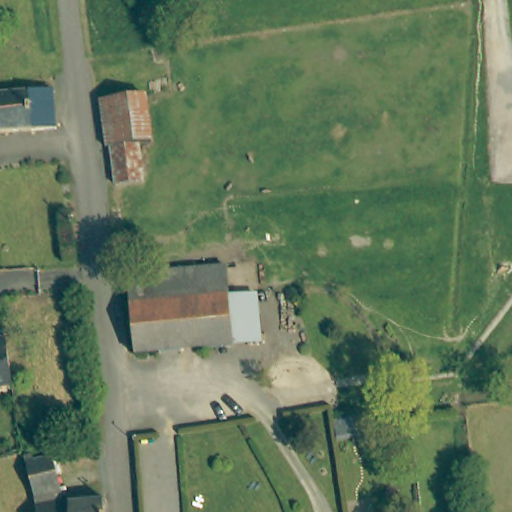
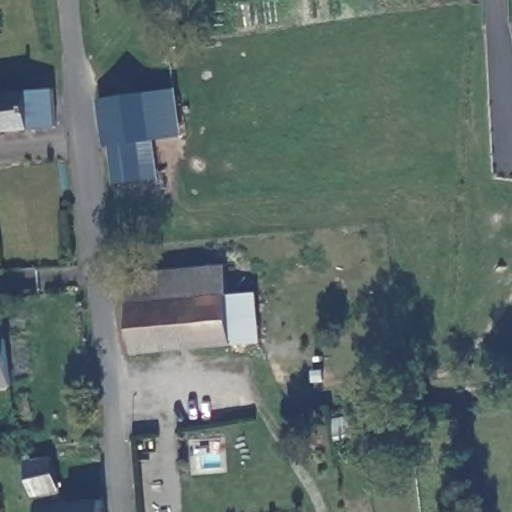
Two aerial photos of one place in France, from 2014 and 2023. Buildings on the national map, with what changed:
unchanged [(173,83),(175,135),(142,138),(144,180),(116,184),(101,91),(173,83)]
unchanged [(54,94),(53,104),(50,135),(0,132),(0,91),(51,94),(54,94)]
unchanged [(260,290),(261,302),(265,339),(135,351),(133,330),(129,270),(229,261),(232,293),(260,290)]
unchanged [(12,387),(0,389),(0,335),(4,334),(12,387)]
unchanged [(385,408),(386,425),(360,425),(359,409),(385,408)]
unchanged [(67,504),(31,510),(19,465),(54,458),(67,504)]
unchanged [(110,496),(112,512),(32,512),(31,510),(67,504),(110,496)]

